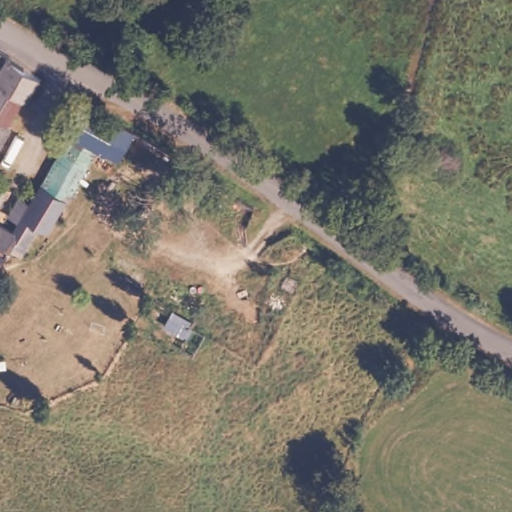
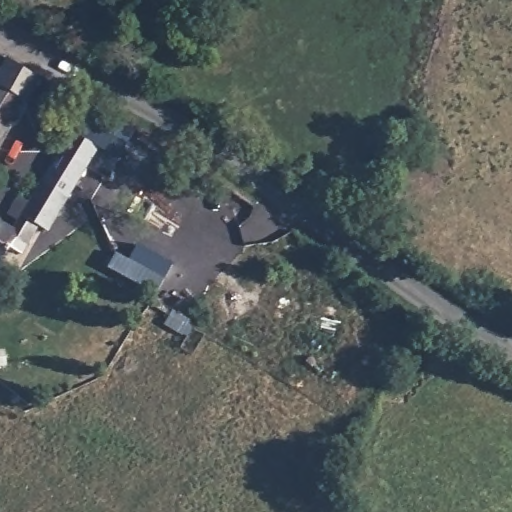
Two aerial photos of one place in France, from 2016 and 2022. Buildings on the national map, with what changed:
unchanged [(45,78),(32,100),(27,98),(11,130),(15,131),(0,158),(0,75),(9,58),(45,78)]
unchanged [(88,101),(124,123),(129,126),(112,153),(107,150),(100,162),(92,158),(65,142),(88,101)]
unchanged [(24,218),(10,210),(21,191),(34,197),(62,152),(60,150),(65,142),(92,158),(51,227),(44,224),(26,253),(15,246),(4,263),(0,261),(0,221),(17,231),(24,218)]
new [(109,268),(117,253),(130,261),(138,244),(172,263),(155,293),(109,268)]

